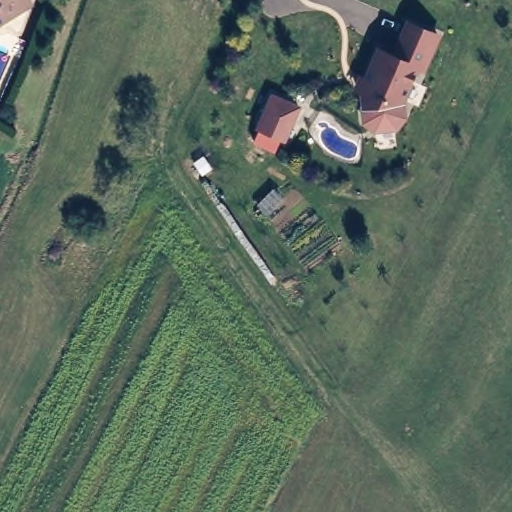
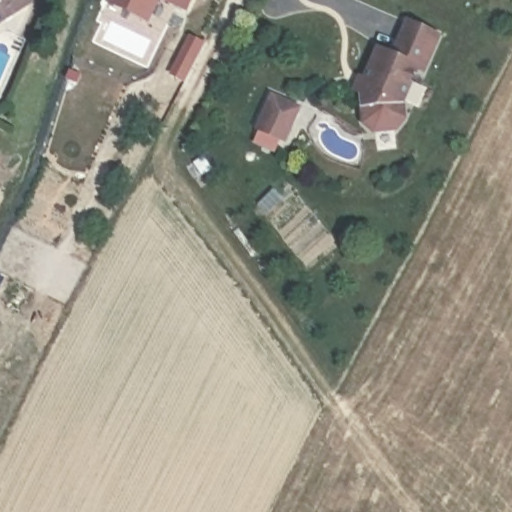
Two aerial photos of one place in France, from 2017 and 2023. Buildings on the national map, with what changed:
unchanged [(34,3),(28,6),(0,24),(0,0),(32,0),(34,3)]
new [(106,2),(108,0),(193,0),(188,11),(160,0),(148,21),(106,2)]
unchanged [(438,31),(423,71),(418,70),(405,103),(404,119),(395,131),(373,131),(360,123),(358,105),(361,93),(354,90),(361,70),(368,73),(378,44),(393,51),(406,19),(438,31)]
unchanged [(270,93),(301,107),(284,143),(253,129),(270,93)]

